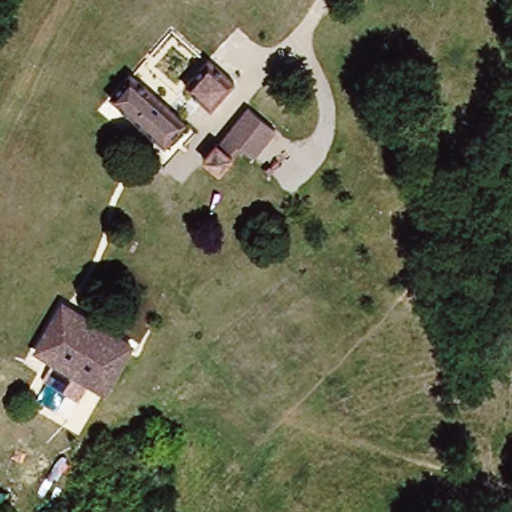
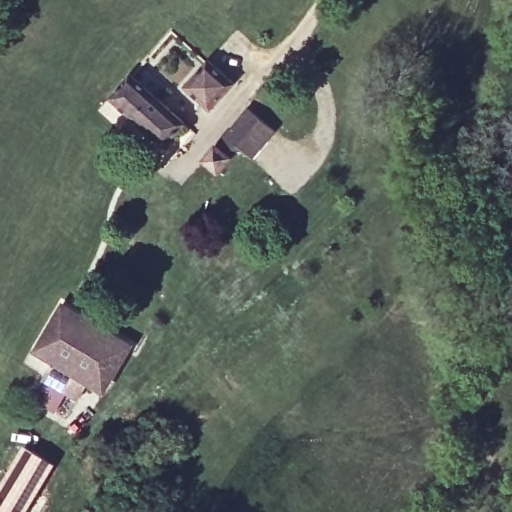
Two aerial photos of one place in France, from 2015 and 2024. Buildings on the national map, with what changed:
unchanged [(171,45),(229,92),(206,121),(148,73),(171,45)]
unchanged [(112,100),(131,75),(188,126),(168,149),(112,100)]
unchanged [(229,158),(232,161),(219,176),(203,161),(216,146),(218,148),(250,112),(276,136),(253,162),(238,149),(229,158)]
unchanged [(122,371),(108,393),(92,383),(80,401),(46,379),(58,361),(57,361),(41,350),(71,306),(135,347),(137,348),(122,371)]
new [(24,446),(56,464),(27,512),(0,512),(0,486),(24,446)]
demolished [(8,490),(0,506),(0,485),(8,490)]

